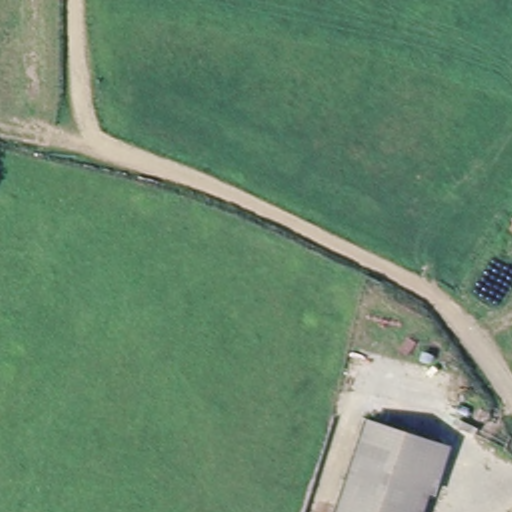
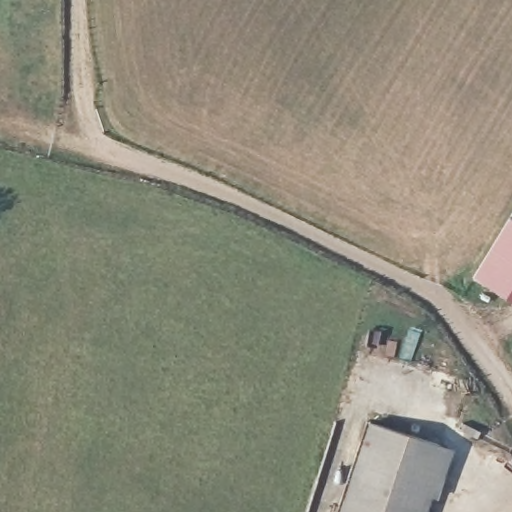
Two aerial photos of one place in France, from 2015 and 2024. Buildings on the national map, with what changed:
new [(510,216),(512,217),(512,300),(472,278),(510,216)]
unchanged [(338,512),(363,422),(437,444),(415,512),(338,512)]
unchanged [(430,512),(415,512),(437,444),(450,448),(430,512)]

